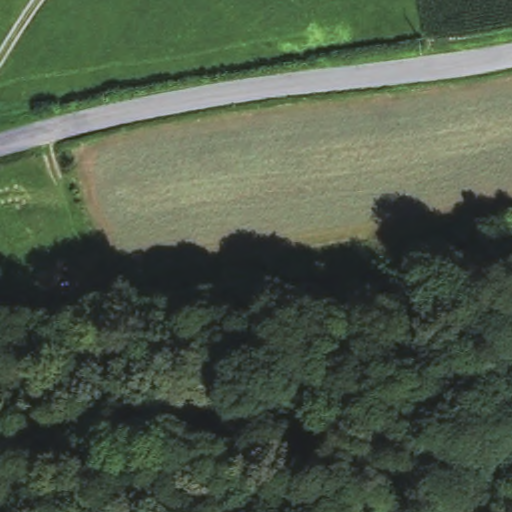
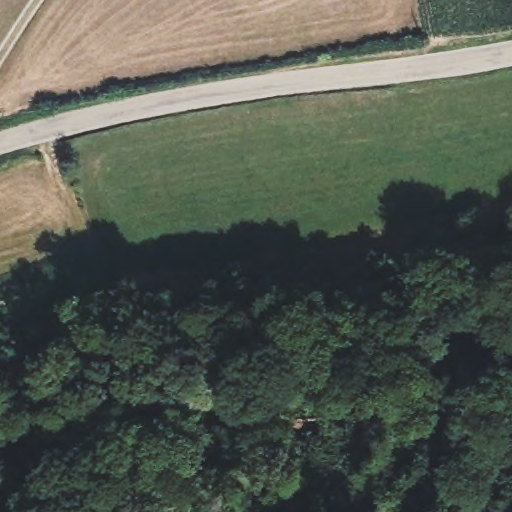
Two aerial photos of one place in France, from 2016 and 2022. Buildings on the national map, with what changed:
[]

